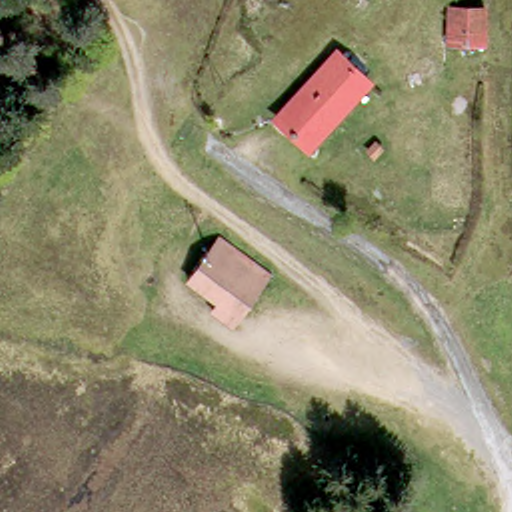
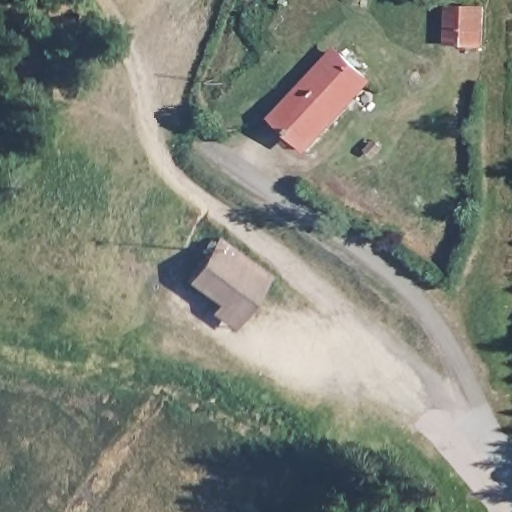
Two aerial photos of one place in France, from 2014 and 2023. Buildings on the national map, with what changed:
unchanged [(449,40),(452,5),(485,9),(482,43),(449,40)]
unchanged [(275,117),(329,59),(339,47),(367,75),(357,85),(303,144),(275,117)]
unchanged [(209,315),(217,305),(185,281),(214,245),(265,283),(241,315),(229,330),(209,315)]

